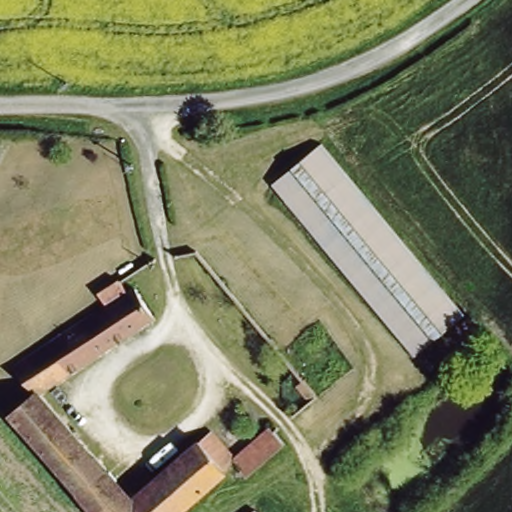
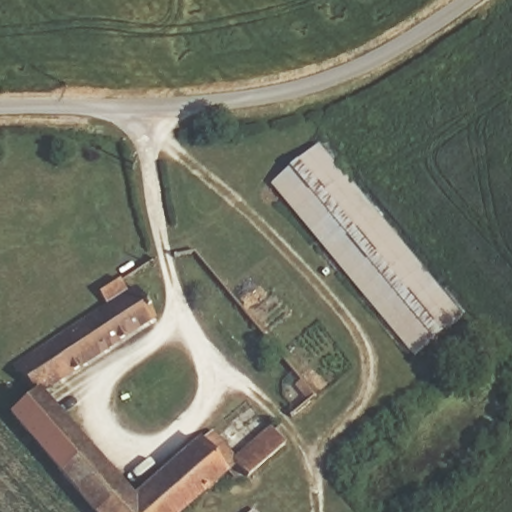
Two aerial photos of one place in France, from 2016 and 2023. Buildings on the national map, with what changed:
unchanged [(266,181),(326,137),(466,308),(411,356),(266,181)]
unchanged [(136,325),(44,393),(23,370),(23,368),(82,318),(76,311),(103,290),(119,305),(136,325)]
unchanged [(13,418),(44,393),(80,437),(49,463),(13,418)]
unchanged [(266,430),(281,447),(243,479),(226,462),(266,430)]
unchanged [(226,462),(166,512),(111,512),(130,496),(204,435),(226,462)]
unchanged [(111,512),(89,512),(49,463),(80,437),(130,496),(111,512)]
unchanged [(257,512),(253,512),(256,510),(257,512)]

